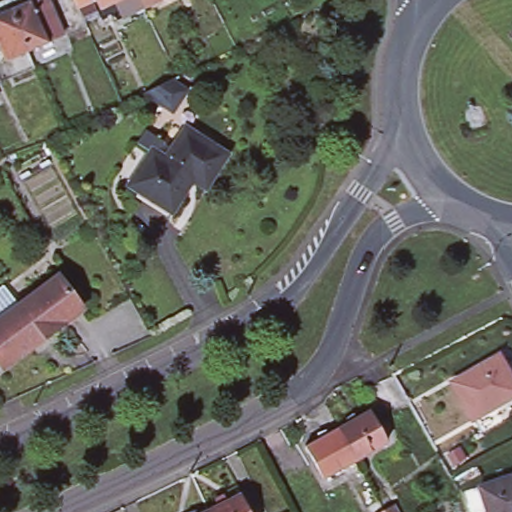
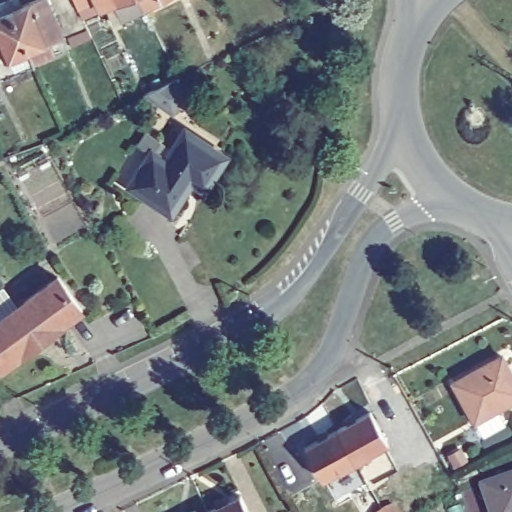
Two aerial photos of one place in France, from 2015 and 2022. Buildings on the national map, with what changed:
unchanged [(0,0),(13,0),(29,36),(8,46),(0,49),(0,1),(1,1),(0,0)]
unchanged [(29,36),(13,0),(55,0),(57,5),(65,21),(52,27),(29,36)]
unchanged [(78,0),(75,1),(74,0),(78,0)]
unchanged [(174,68),(190,78),(179,94),(167,86),(164,91),(148,81),(174,68)]
unchanged [(141,149),(148,136),(174,154),(187,134),(226,159),(204,190),(192,182),(177,206),(171,214),(131,188),(147,164),(152,156),(141,149)]
unchanged [(1,370),(0,369),(0,292),(3,290),(16,308),(56,278),(81,311),(1,370)]
unchanged [(449,380),(497,353),(512,382),(512,393),(471,417),(449,380)]
unchanged [(367,413),(385,444),(355,461),(336,430),(367,413)]
unchanged [(321,479),(304,448),(336,430),(355,461),(321,479)]
unchanged [(512,471),(512,512),(486,512),(477,483),(512,471)]
unchanged [(377,503),(389,497),(396,492),(406,508),(400,512),(383,512),(377,503)]
unchanged [(237,496),(246,512),(206,512),(206,511),(237,496)]
unchanged [(206,511),(206,512),(204,512),(206,511)]

